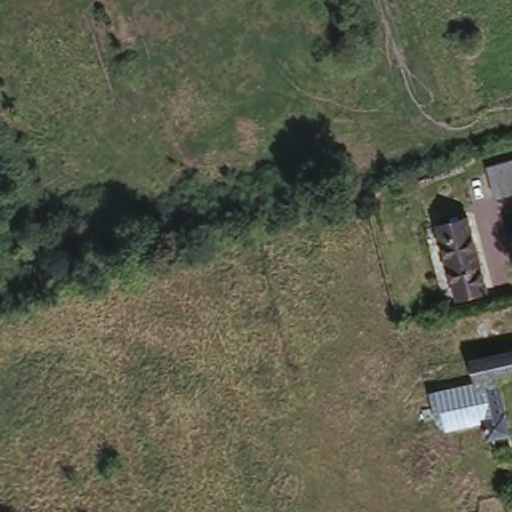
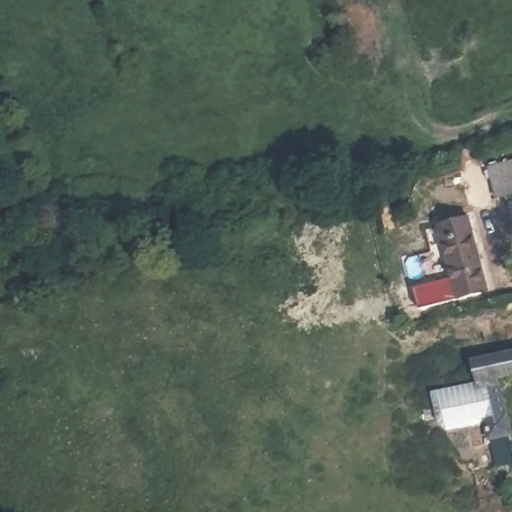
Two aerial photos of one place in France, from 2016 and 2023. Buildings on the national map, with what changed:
unchanged [(495,196),(487,166),(504,161),(512,159),(512,191),(511,192),(495,196)]
unchanged [(472,221),(492,296),(457,306),(438,230),(472,221)]
unchanged [(499,390),(478,394),(476,386),(472,368),(512,359),(512,378),(497,382),(499,390)]
unchanged [(512,424),(512,439),(486,445),(480,423),(510,416),(512,424)]

